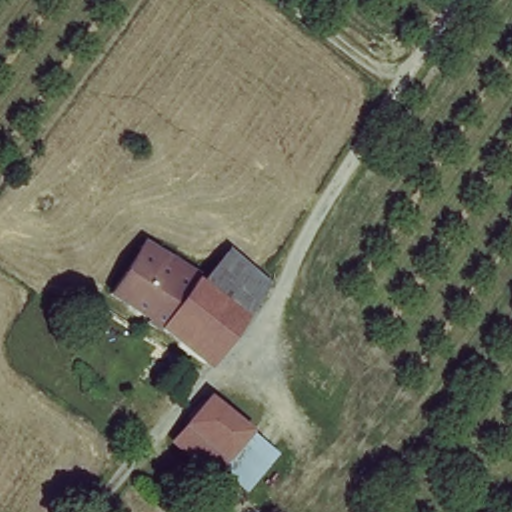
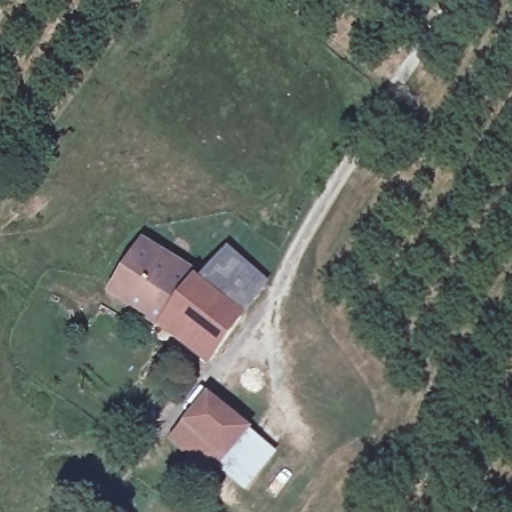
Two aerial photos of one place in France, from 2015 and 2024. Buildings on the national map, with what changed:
unchanged [(143,241),(205,284),(228,250),(267,275),(222,348),(195,331),(185,342),(143,318),(149,309),(115,288),(143,241)]
unchanged [(205,390),(250,426),(278,451),(246,490),(220,466),(177,427),(205,390)]

